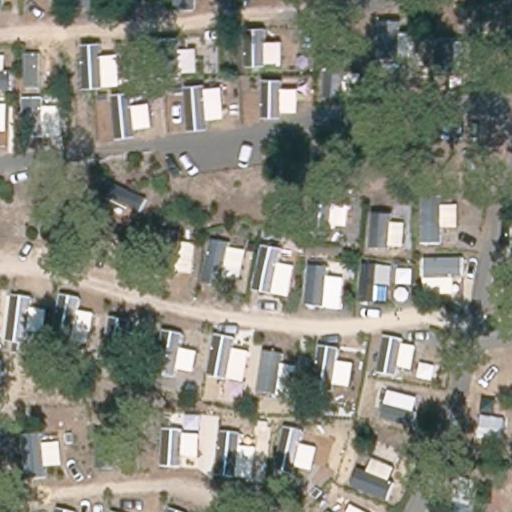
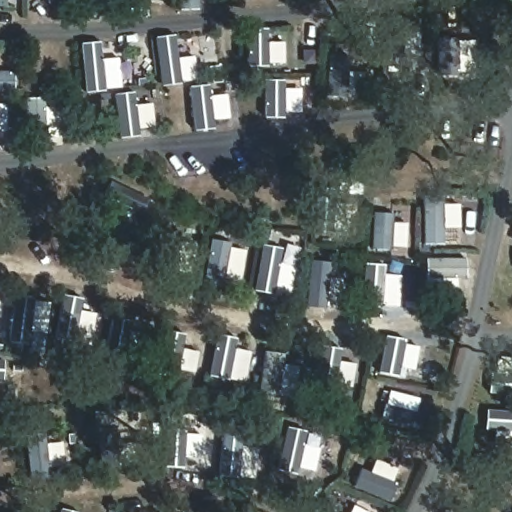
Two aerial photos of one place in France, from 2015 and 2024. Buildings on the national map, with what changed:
unchanged [(298,108),(270,106),(275,36),(302,38),(298,108)]

